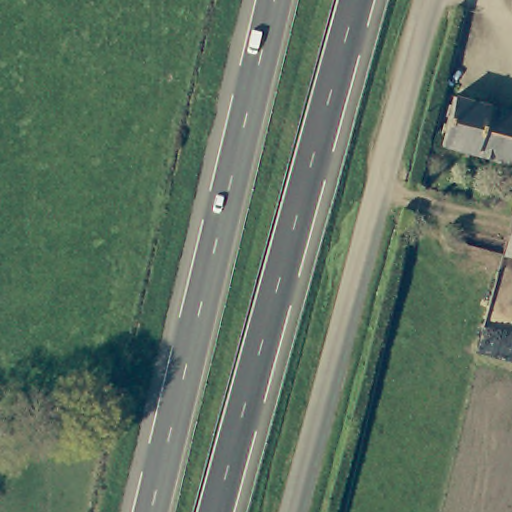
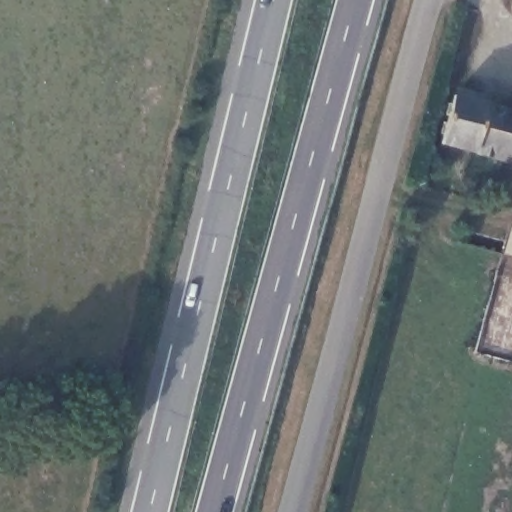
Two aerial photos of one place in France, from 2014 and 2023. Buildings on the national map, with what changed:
unchanged [(454,92),(512,109),(512,160),(442,137),(454,92)]
unchanged [(512,219),(512,249),(504,246),(512,219)]

